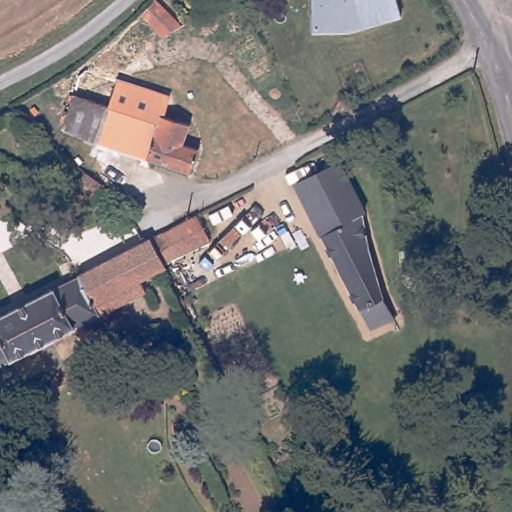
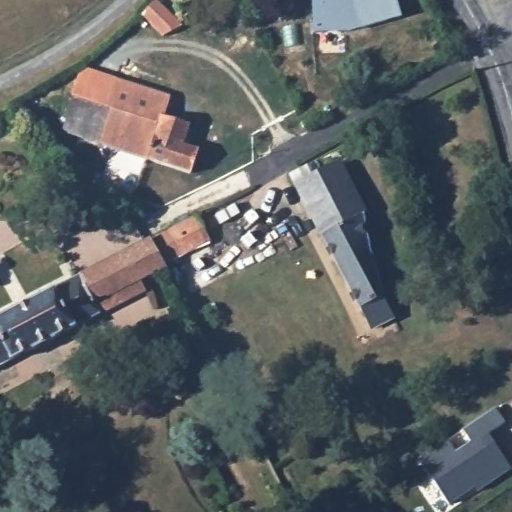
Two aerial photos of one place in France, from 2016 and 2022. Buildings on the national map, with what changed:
unchanged [(313,0),(394,0),(399,19),(359,30),(311,33),(313,0)]
unchanged [(135,18),(150,4),(169,26),(174,32),(154,41),(135,18)]
unchanged [(65,130),(86,70),(129,85),(109,145),(65,130)]
unchanged [(129,85),(169,97),(164,114),(194,125),(187,144),(202,149),(193,174),(109,145),(129,85)]
unchanged [(296,180),(341,157),(365,204),(363,206),(320,227),(296,180)]
unchanged [(363,206),(367,231),(374,263),(395,311),(371,324),(320,227),(363,206)]
unchanged [(203,212),(215,237),(202,244),(169,261),(156,235),(203,212)]
unchanged [(154,236),(156,235),(169,261),(145,275),(150,285),(18,355),(0,323),(0,318),(154,236)]
unchanged [(18,355),(0,365),(0,323),(18,355)]
new [(453,455),(469,446),(461,433),(494,412),(504,428),(487,439),(491,445),(508,473),(474,495),(471,490),(445,507),(416,461),(445,443),(453,455)]

